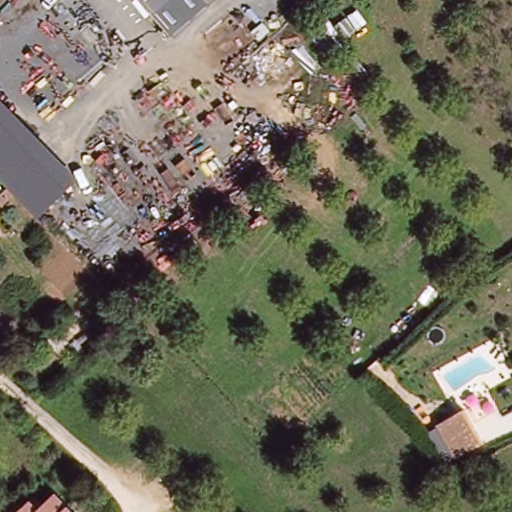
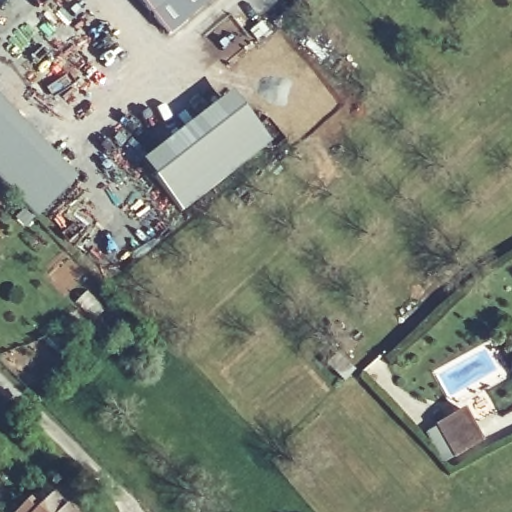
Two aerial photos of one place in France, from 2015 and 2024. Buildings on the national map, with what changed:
unchanged [(168,31),(140,0),(203,0),(168,31)]
new [(232,93),(271,144),(182,214),(143,163),(232,93)]
unchanged [(35,218),(0,182),(0,100),(78,178),(35,218)]
unchanged [(428,413),(439,407),(465,395),(481,427),(454,439),(443,445),(428,413)]
unchanged [(41,506),(56,491),(76,512),(17,512),(32,497),(41,506)]

